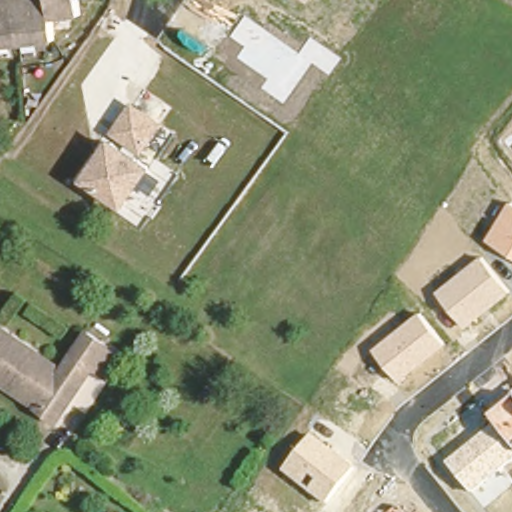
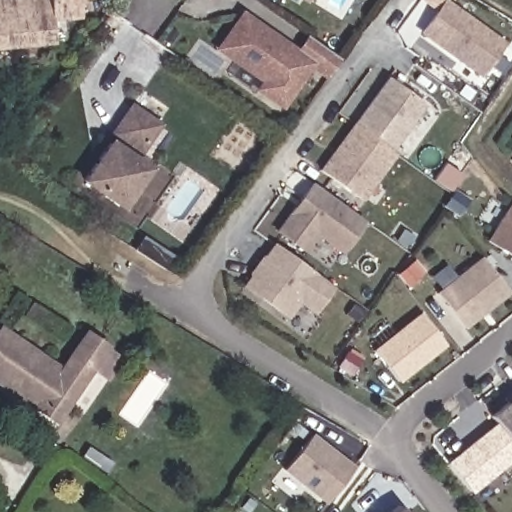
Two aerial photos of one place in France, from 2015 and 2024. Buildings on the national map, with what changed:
unchanged [(13,35),(0,36),(0,0),(10,0),(13,35)]
unchanged [(44,10),(46,32),(13,35),(10,0),(43,0),(44,10)]
unchanged [(75,8),(44,10),(43,0),(74,0),(75,8)]
unchanged [(309,4),(303,0),(310,0),(309,4)]
new [(418,33),(442,0),(446,0),(505,42),(482,76),(418,33)]
unchanged [(328,76),(310,64),(282,104),(261,89),(267,81),(236,59),(244,48),(229,37),(244,16),(298,54),(309,38),(339,59),(328,76)]
new [(363,201),(319,168),(387,76),(425,105),(391,152),(395,156),(363,201)]
unchanged [(142,159),(154,168),(125,211),(80,183),(133,102),(165,124),(142,159)]
new [(274,231),(310,182),(365,222),(342,254),(317,236),(305,253),(274,231)]
unchanged [(510,203),(512,204),(512,256),(488,243),(510,203)]
new [(273,243),(334,288),(314,315),(300,304),(288,320),(242,286),(249,277),(247,274),(261,255),(263,256),(273,243)]
unchanged [(465,329),(438,292),(481,258),(508,293),(465,329)]
unchanged [(399,383),(377,350),(422,313),(446,345),(399,383)]
unchanged [(88,342),(106,354),(59,423),(0,387),(0,336),(6,340),(64,377),(88,342)]
unchanged [(447,463),(493,426),(485,417),(512,393),(512,459),(471,494),(447,463)]
unchanged [(329,504),(284,469),(313,432),(355,466),(329,504)]
unchanged [(410,512),(392,512),(403,503),(410,512)]

